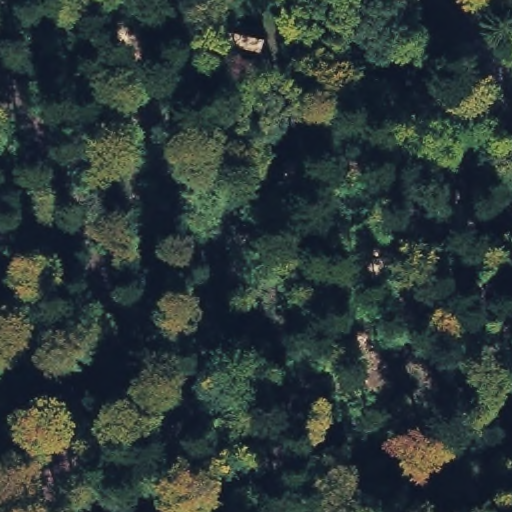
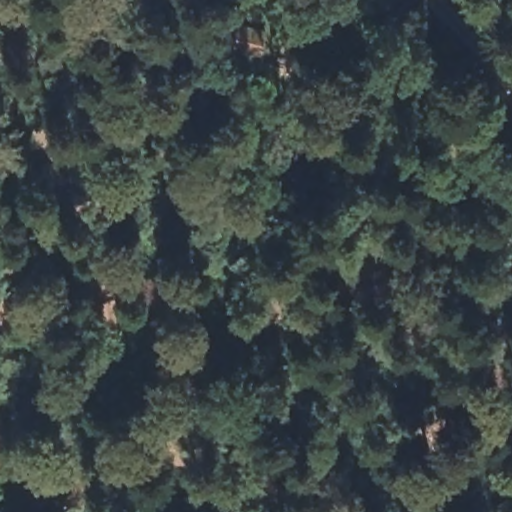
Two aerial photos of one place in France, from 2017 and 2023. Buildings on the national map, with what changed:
unchanged [(440,133),(465,154),(450,179),(420,159),(440,133)]

